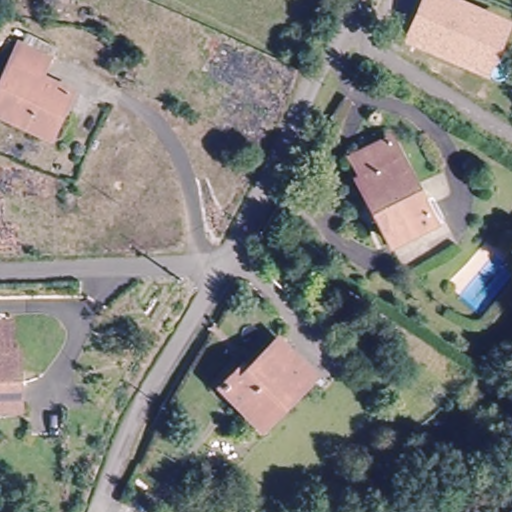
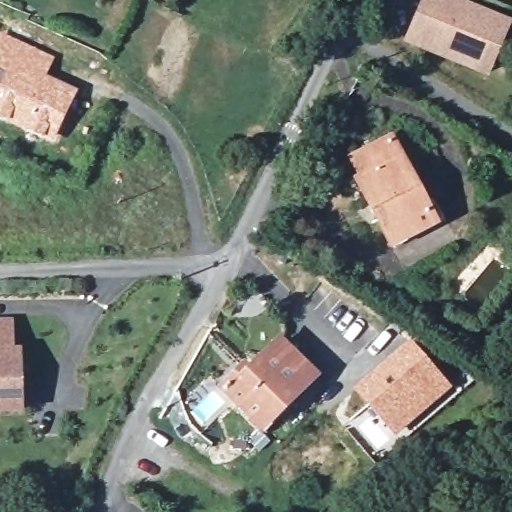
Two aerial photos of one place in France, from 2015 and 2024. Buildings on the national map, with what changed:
unchanged [(468,68),(414,44),(427,12),(432,0),(445,0),(488,19),(504,25),(483,75),(468,68)]
unchanged [(48,60),(39,82),(72,95),(49,142),(0,119),(0,84),(16,47),(48,60)]
unchanged [(429,206),(437,200),(446,214),(399,247),(358,184),(365,180),(352,159),(386,137),(429,206)]
unchanged [(15,369),(16,414),(0,415),(0,327),(5,327),(6,338),(8,361),(8,369),(15,369)]
new [(409,340),(451,389),(395,438),(353,389),(409,340)]
unchanged [(260,427),(223,389),(250,362),(256,367),(282,342),(313,374),(260,427)]
unchanged [(8,452),(5,449),(0,443),(0,433),(9,426),(21,439),(8,452)]

